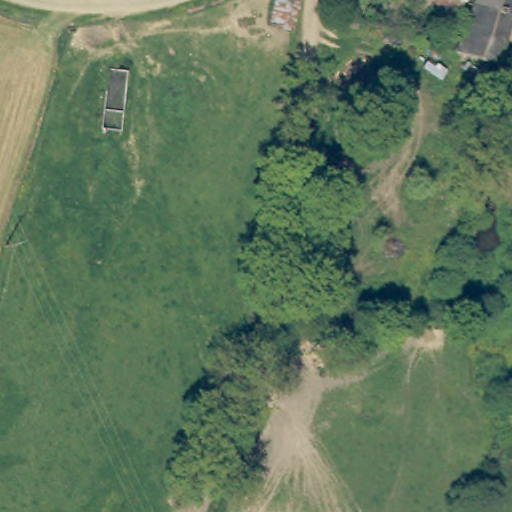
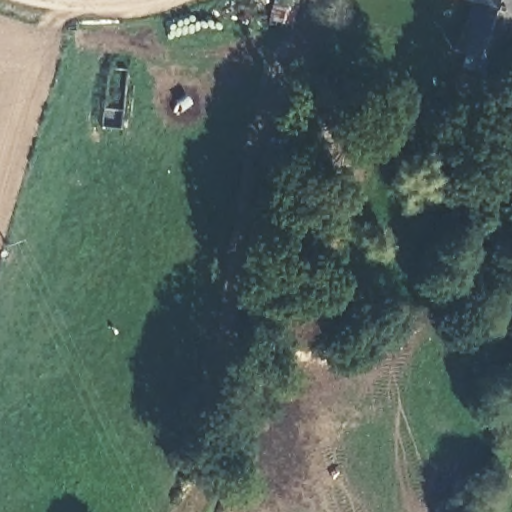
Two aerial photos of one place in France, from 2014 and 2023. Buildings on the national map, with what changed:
unchanged [(289,31),(267,26),(274,0),(297,0),(289,31)]
unchanged [(434,7),(437,0),(463,0),(458,15),(434,7)]
unchanged [(495,69),(450,56),(471,11),(475,0),(512,0),(512,20),(495,69)]

